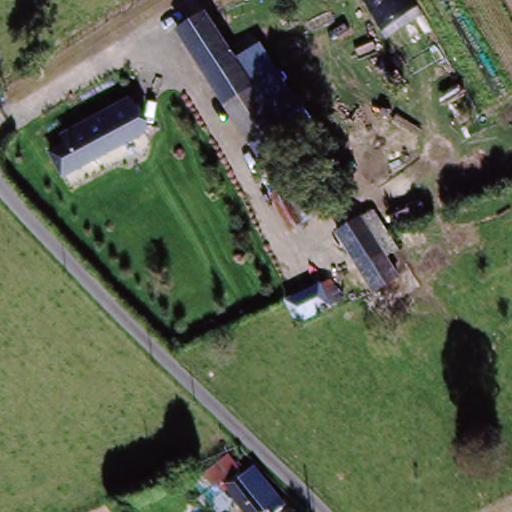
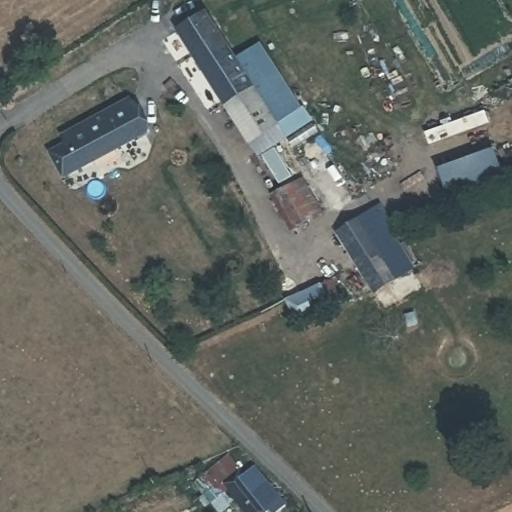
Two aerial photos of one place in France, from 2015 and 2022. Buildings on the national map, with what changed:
unchanged [(216,21),(233,52),(252,87),(220,105),(179,35),(212,15),(216,21)]
unchanged [(241,58),(267,43),(306,109),(280,123),(241,58)]
unchanged [(276,125),(243,144),(220,105),(252,87),(276,125)]
unchanged [(140,133),(61,181),(47,159),(64,149),(57,139),(120,100),(140,133)]
new [(493,149),(502,174),(450,194),(437,166),(493,149)]
unchanged [(318,210),(287,228),(263,187),(294,169),(318,210)]
unchanged [(371,214),(382,233),(395,258),(381,265),(390,280),(373,289),(359,264),(340,231),(356,222),(371,214)]
unchanged [(337,309),(291,327),(282,305),(327,287),(337,309)]
unchanged [(274,512),(266,504),(257,512),(248,512),(222,485),(217,489),(224,497),(215,505),(207,498),(196,486),(233,454),(237,450),(239,451),(262,477),(278,493),(288,503),(278,512),(274,512)]

